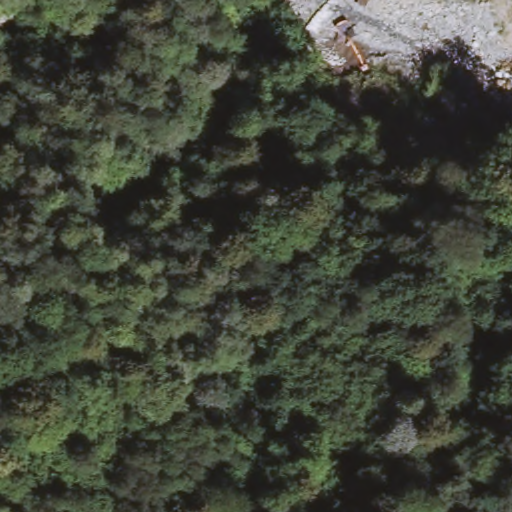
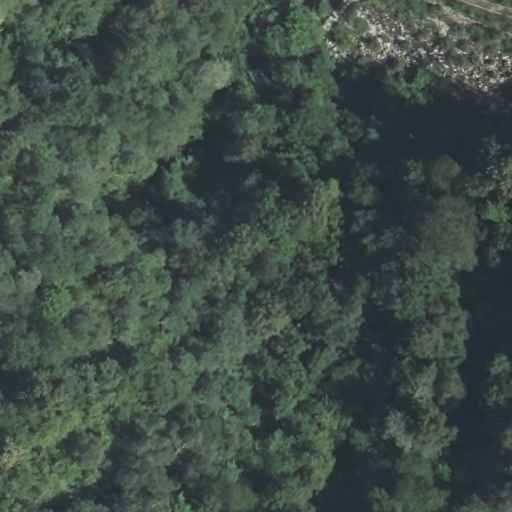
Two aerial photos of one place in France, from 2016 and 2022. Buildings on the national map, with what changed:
[]

